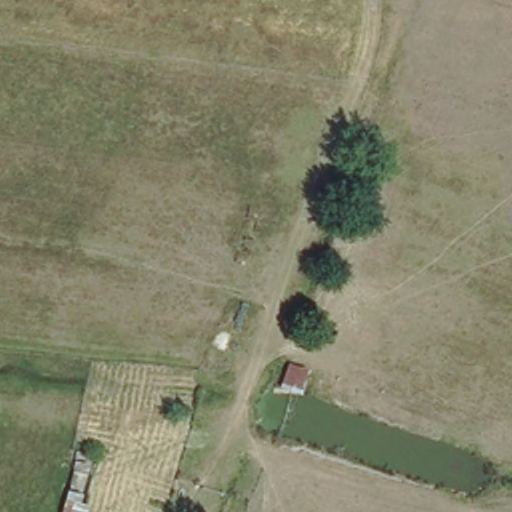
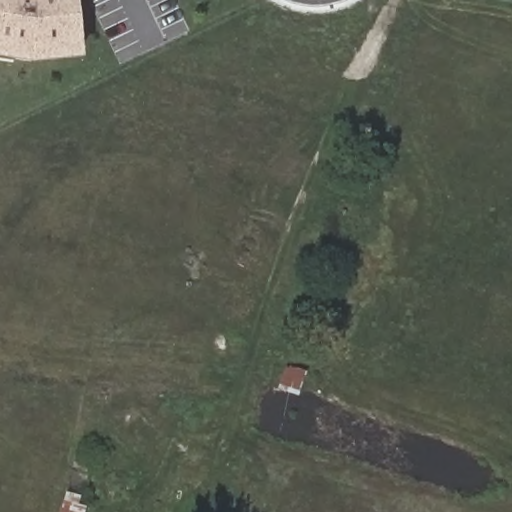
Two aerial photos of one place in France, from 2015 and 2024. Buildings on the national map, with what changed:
new [(18,58),(20,53),(0,50),(0,0),(67,0),(72,0),(78,54),(66,55),(29,60),(18,58)]
new [(20,53),(17,64),(0,61),(0,50),(20,53)]
unchanged [(276,363),(306,371),(301,393),(270,385),(276,363)]
unchanged [(64,492),(88,497),(84,512),(60,512),(64,492)]

